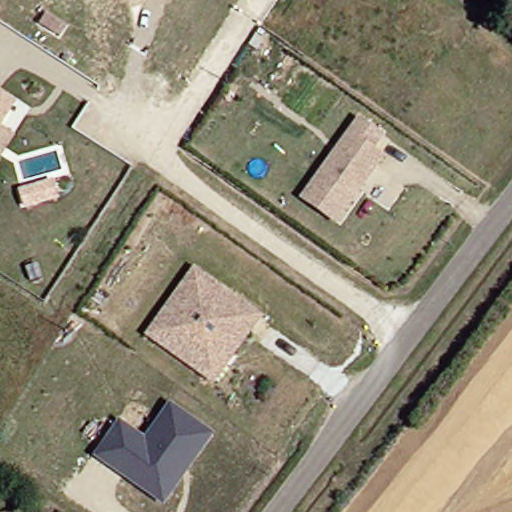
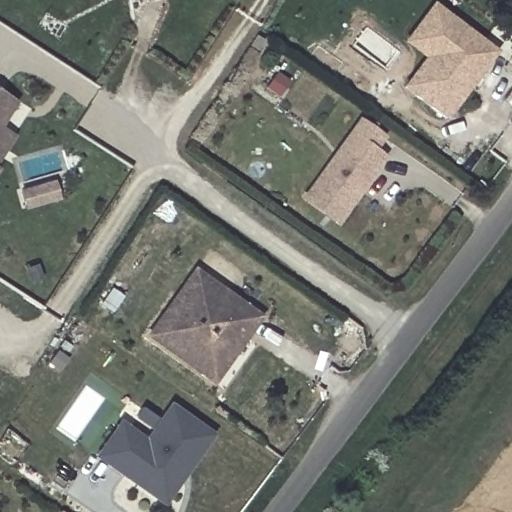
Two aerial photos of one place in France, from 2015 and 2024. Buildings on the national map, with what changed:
new [(447,121),(402,87),(423,60),(402,42),(432,2),(497,53),(447,121)]
new [(512,53),(512,65),(506,60),(512,53)]
unchanged [(9,99),(0,113),(0,93),(9,99)]
unchanged [(309,185),(358,119),(380,135),(371,149),(381,156),(342,210),(332,221),(301,197),(309,185)]
unchanged [(8,133),(0,145),(0,128),(8,133)]
new [(58,182),(62,197),(30,206),(26,191),(58,182)]
unchanged [(211,377),(152,335),(200,270),(264,316),(236,355),(217,381),(211,377)]
unchanged [(215,434),(165,509),(92,458),(118,421),(145,439),(170,402),(215,434)]

